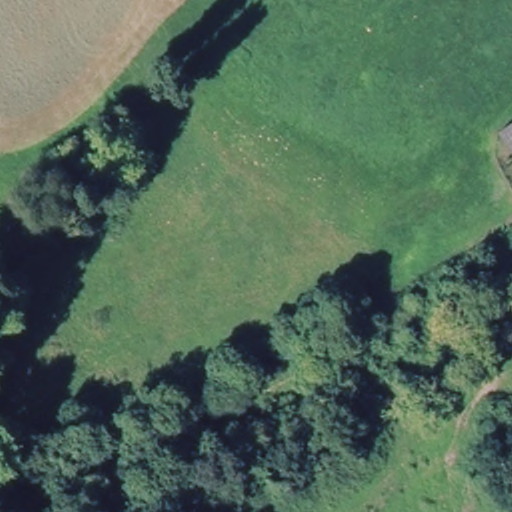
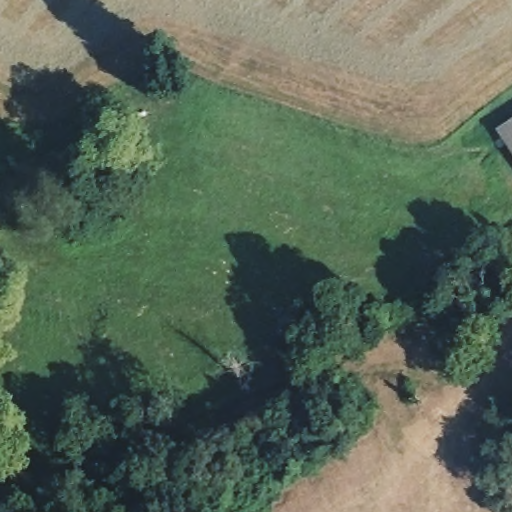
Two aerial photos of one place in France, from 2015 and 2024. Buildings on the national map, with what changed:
unchanged [(512,123),(512,155),(497,132),(512,123)]

